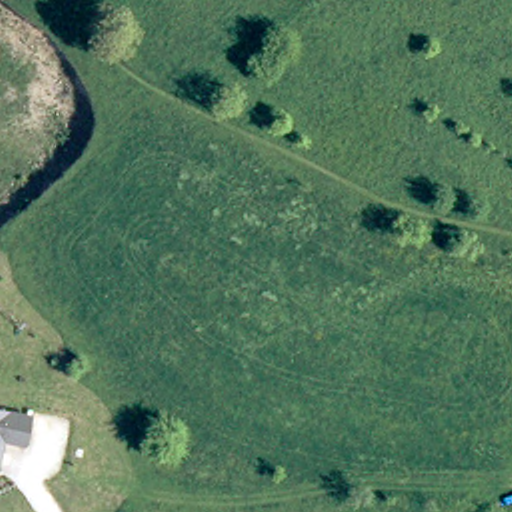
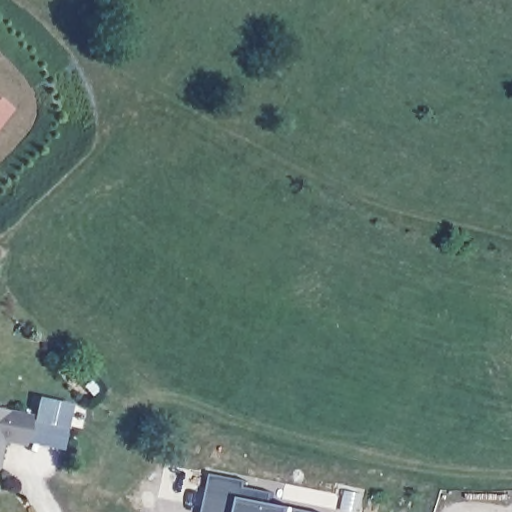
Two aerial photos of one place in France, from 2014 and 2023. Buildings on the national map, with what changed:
new [(0,126),(0,96),(15,107),(0,126)]
unchanged [(23,447),(2,442),(0,453),(0,407),(30,413),(23,447)]
new [(67,425),(62,447),(25,439),(30,413),(67,425)]
new [(272,503),(297,508),(315,512),(207,512),(214,475),(250,483),(248,487),(274,492),(272,503)]

